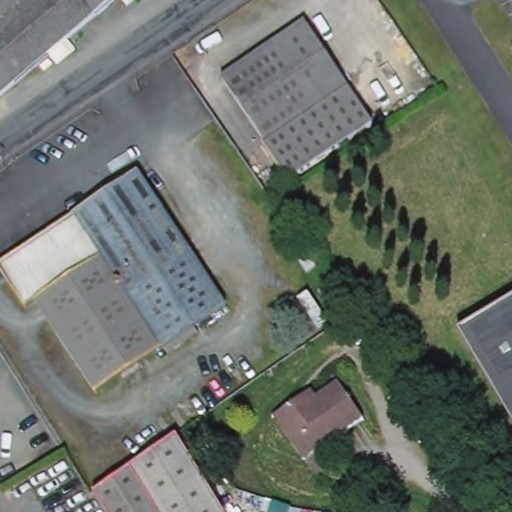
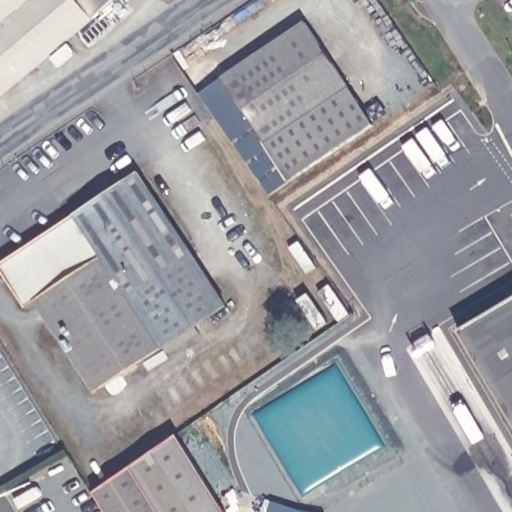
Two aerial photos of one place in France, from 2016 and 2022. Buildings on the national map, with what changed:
unchanged [(114,2),(76,33),(65,31),(0,19),(0,0),(138,0),(123,12),(114,2)]
unchanged [(76,33),(0,96),(0,19),(65,31),(76,33)]
unchanged [(301,24),(357,107),(274,165),(219,80),(301,24)]
unchanged [(369,124),(285,181),(274,165),(357,107),(369,124)]
unchanged [(21,309),(4,283),(0,277),(0,276),(0,259),(7,255),(24,244),(53,226),(137,173),(225,310),(139,365),(95,392),(36,300),(21,309)]
unchanged [(512,430),(458,333),(512,301),(512,430)]
unchanged [(300,396),(305,402),(334,382),(360,417),(301,460),(270,417),(300,396)]
unchanged [(103,503),(161,465),(181,512),(109,512),(103,503)]

